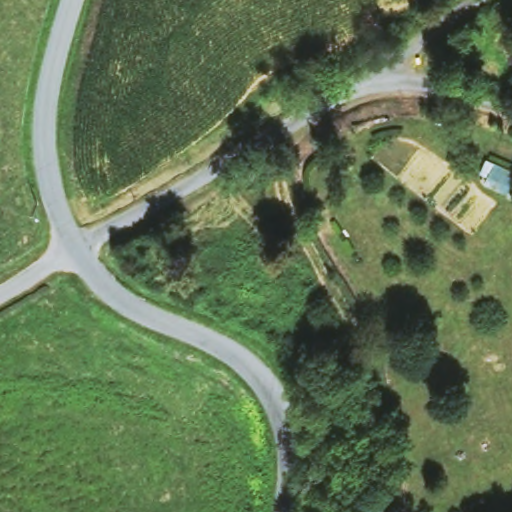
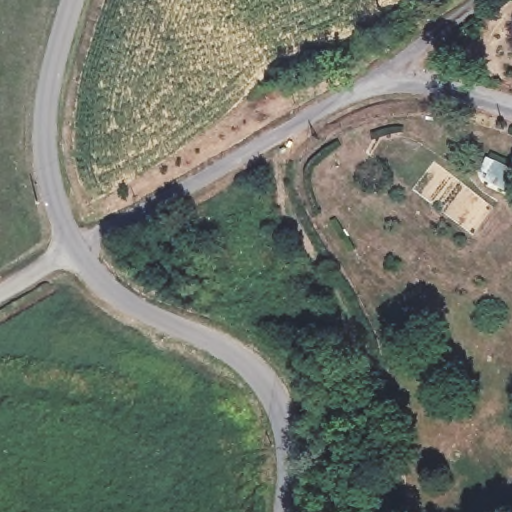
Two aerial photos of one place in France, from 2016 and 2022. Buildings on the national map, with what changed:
unchanged [(512,163),(512,177),(507,189),(480,178),(483,171),(477,169),(485,150),(512,163)]

